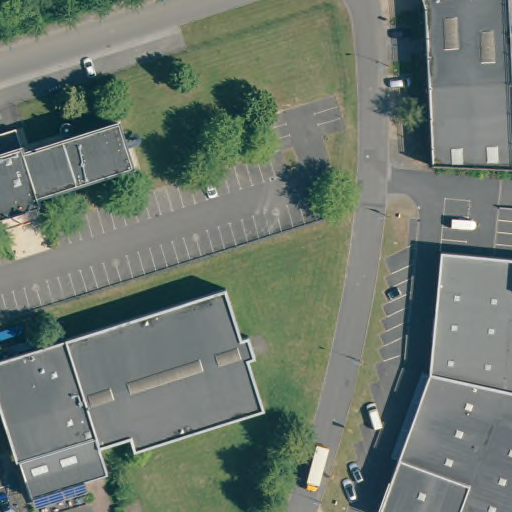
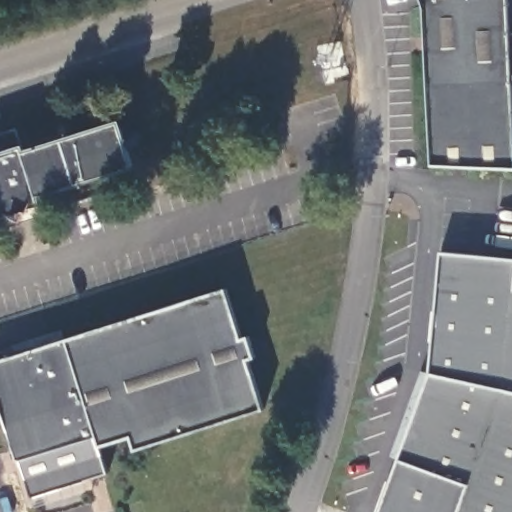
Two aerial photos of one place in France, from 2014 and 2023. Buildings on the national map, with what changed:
unchanged [(508,78),(508,79),(425,83),(421,6),(419,0),(504,0),(505,28),(512,28),(512,78),(508,78)]
unchanged [(508,79),(512,163),(428,159),(425,83),(508,79)]
unchanged [(2,219),(0,213),(0,135),(18,129),(26,150),(119,119),(134,164),(41,196),(44,205),(47,216),(5,229),(2,219)]
unchanged [(429,367),(441,245),(512,252),(512,386),(429,367)]
unchanged [(1,402),(0,403),(0,362),(63,343),(64,340),(226,290),(242,340),(249,338),(256,361),(249,363),(264,411),(135,452),(131,440),(101,449),(99,450),(96,439),(21,461),(18,462),(1,402)]
unchanged [(377,510),(429,367),(512,386),(512,512),(381,512),(377,510)]
unchanged [(96,439),(99,450),(101,449),(109,475),(32,499),(21,461),(96,439)]

